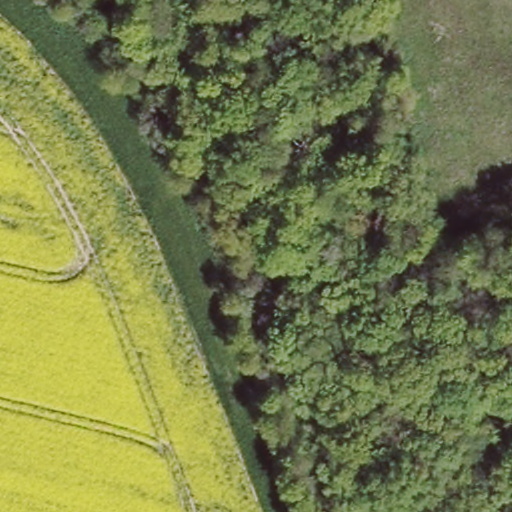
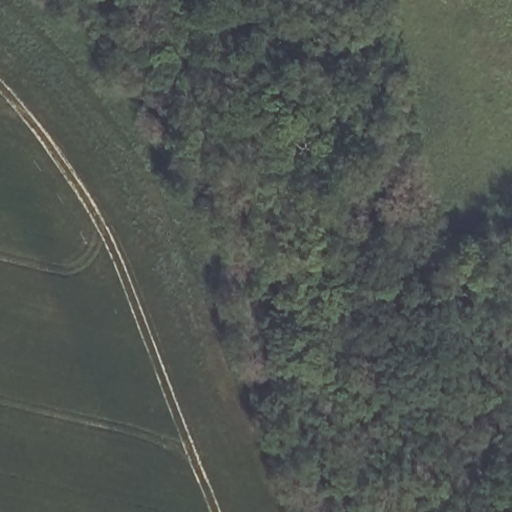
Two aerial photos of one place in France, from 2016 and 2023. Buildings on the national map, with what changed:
[]

